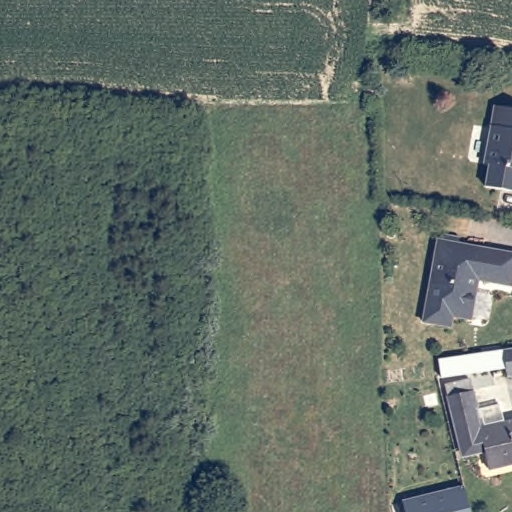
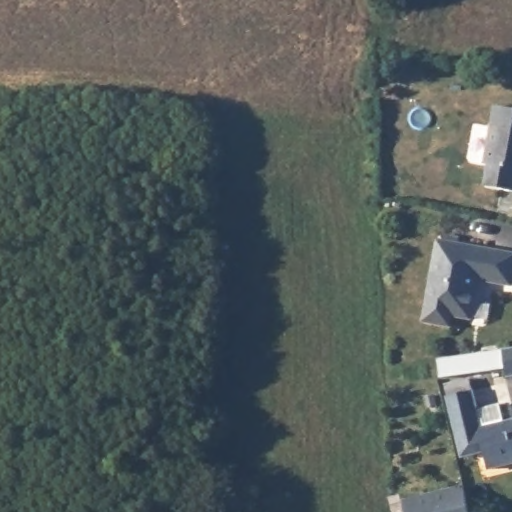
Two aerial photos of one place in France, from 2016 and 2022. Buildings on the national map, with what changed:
unchanged [(512,189),(483,184),(487,163),(482,161),(492,104),(512,107),(512,189)]
unchanged [(473,277),(472,284),(474,290),(469,317),(450,314),(448,325),(420,319),(437,239),(512,252),(512,280),(511,285),(473,277)]
unchanged [(499,352),(512,349),(512,377),(503,379),(499,352)]
unchanged [(481,456),(458,462),(443,396),(444,394),(441,383),(465,378),(468,389),(469,389),(474,414),(497,410),(502,429),(512,426),(512,468),(487,475),(481,456)]
unchanged [(469,512),(407,512),(404,500),(462,486),(469,512)]

